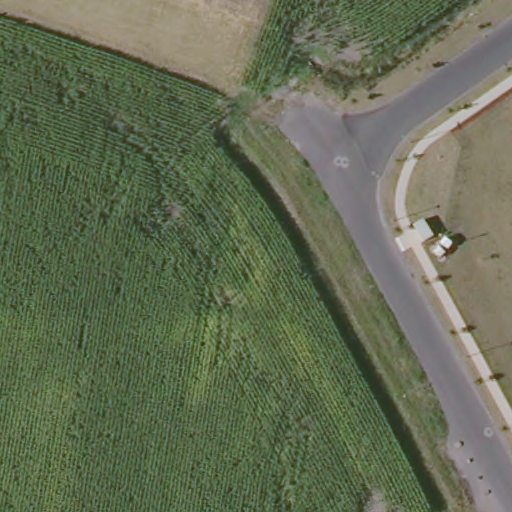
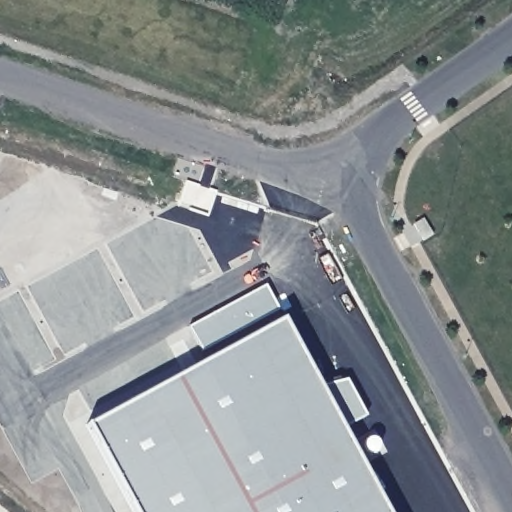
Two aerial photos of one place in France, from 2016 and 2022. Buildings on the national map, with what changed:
new [(90,423),(208,361),(189,325),(268,284),(396,512),(139,512),(90,423)]

